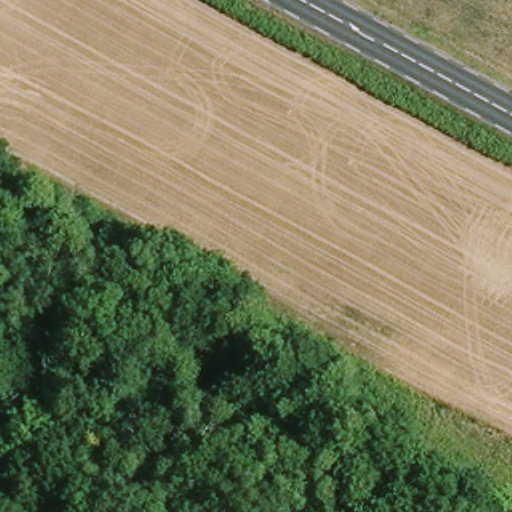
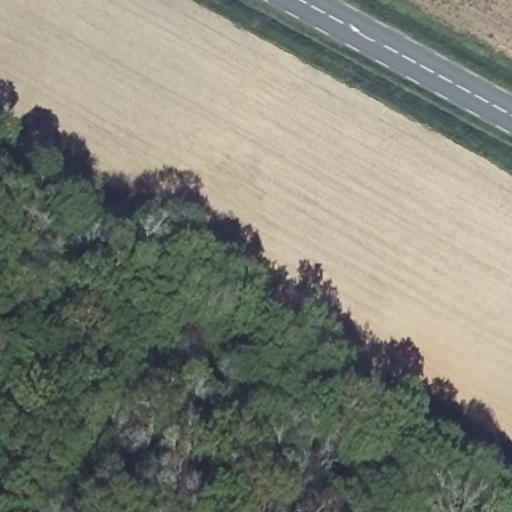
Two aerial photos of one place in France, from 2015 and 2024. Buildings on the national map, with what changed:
[]

